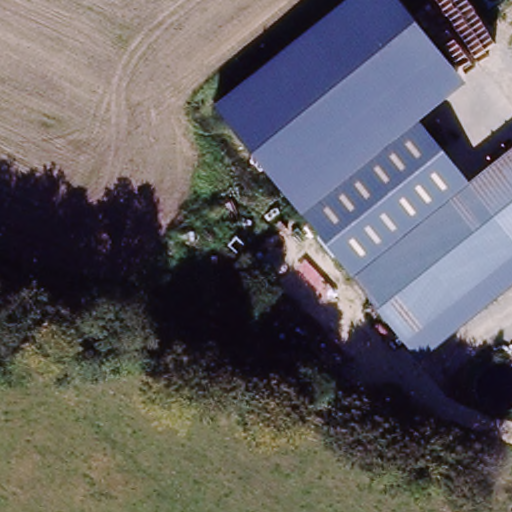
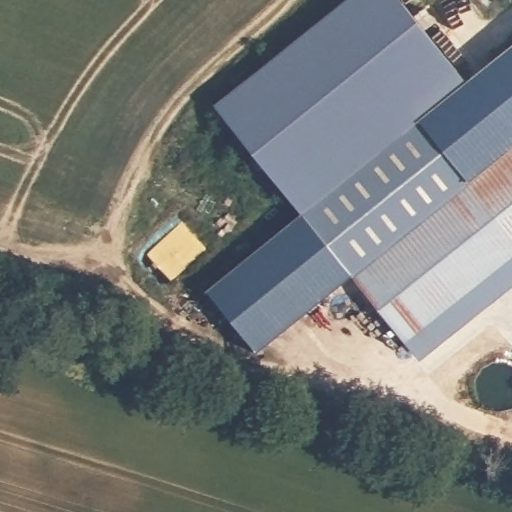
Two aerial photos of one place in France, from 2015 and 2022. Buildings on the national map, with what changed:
unchanged [(215,107),(348,0),(397,0),(465,85),(419,122),(298,214),(215,107)]
new [(419,122),(465,85),(512,47),(512,149),(467,182),(419,122)]
unchanged [(467,182),(512,149),(512,280),(413,359),(298,214),(419,122),(467,182)]
new [(350,280),(260,348),(208,292),(300,217),(350,280)]

